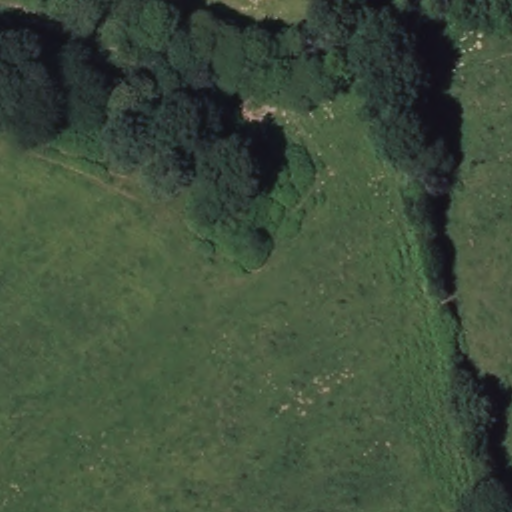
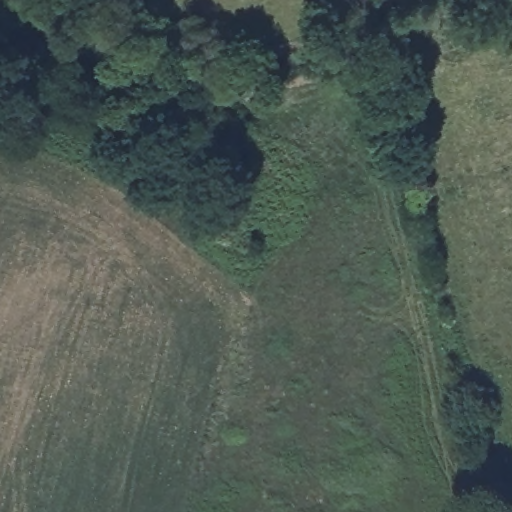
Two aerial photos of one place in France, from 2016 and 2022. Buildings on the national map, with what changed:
[]

